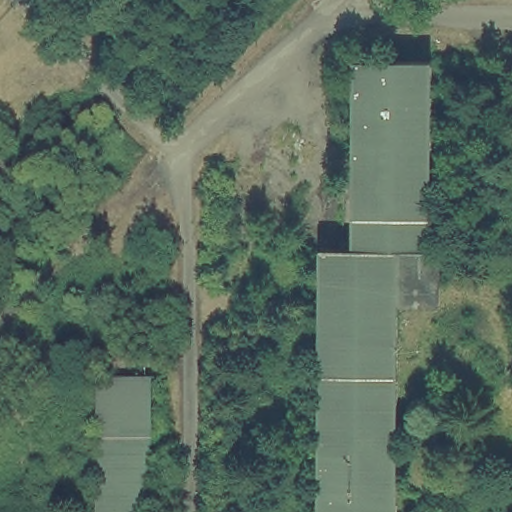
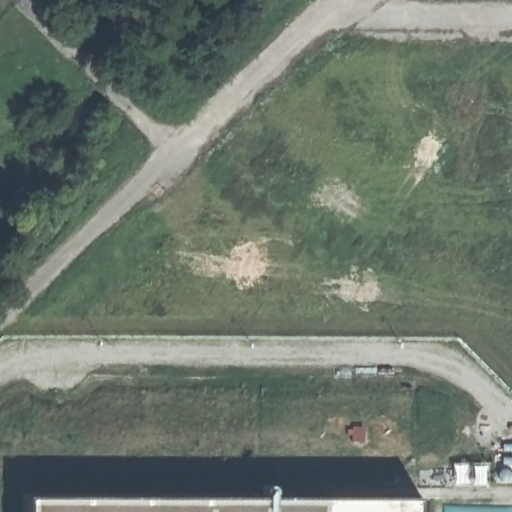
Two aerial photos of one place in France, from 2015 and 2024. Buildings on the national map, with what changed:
demolished [(440,255),(409,256),(405,512),(323,512),(320,248),(351,245),(356,60),(436,60),(440,255)]
demolished [(156,512),(98,512),(97,378),(156,377),(156,512)]
new [(26,497),(421,498),(421,512),(26,512),(26,497)]

